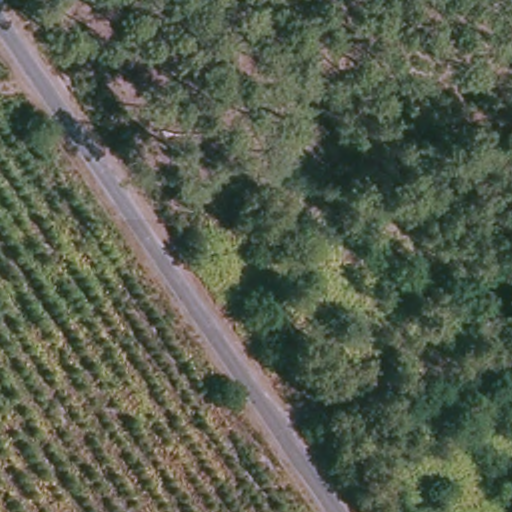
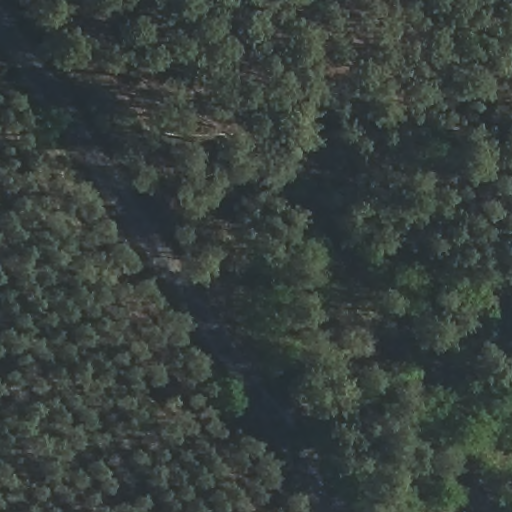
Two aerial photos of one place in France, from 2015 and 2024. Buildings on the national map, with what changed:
[]

